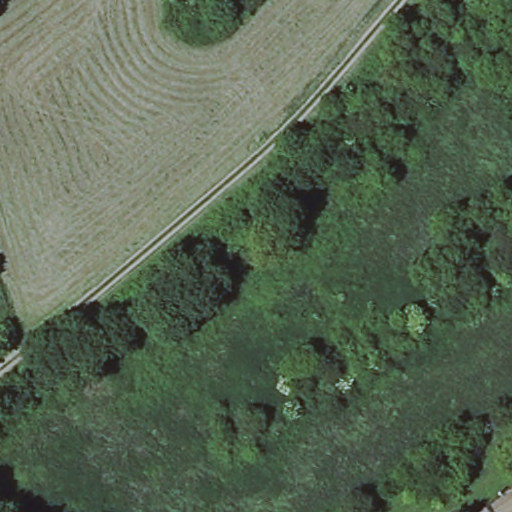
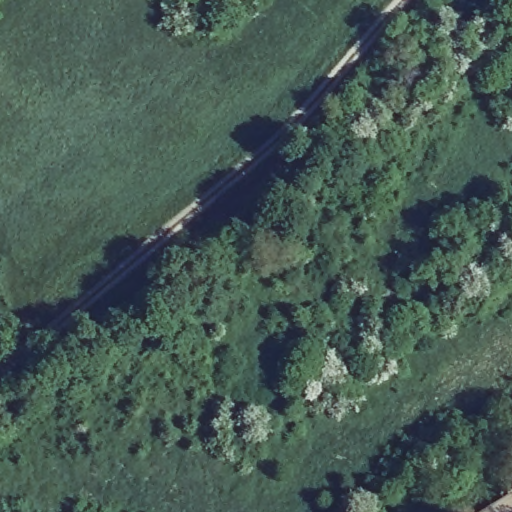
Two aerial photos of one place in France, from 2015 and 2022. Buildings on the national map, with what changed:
unchanged [(512,491),(512,512),(468,512),(509,486),(512,491)]

